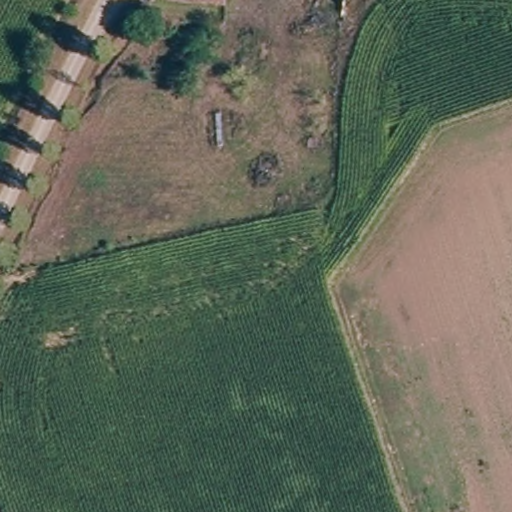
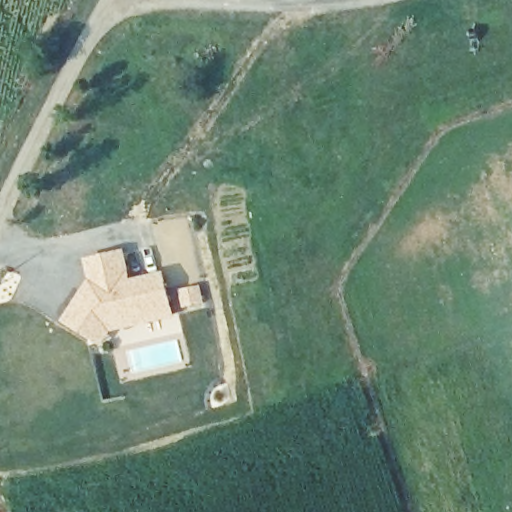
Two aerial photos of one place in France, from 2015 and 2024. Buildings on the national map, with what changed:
demolished [(223,1),(189,0),(223,0),(223,1)]
new [(63,322),(89,279),(85,259),(125,250),(132,279),(165,272),(169,291),(201,286),(204,303),(173,307),(176,317),(112,332),(102,347),(63,322)]

